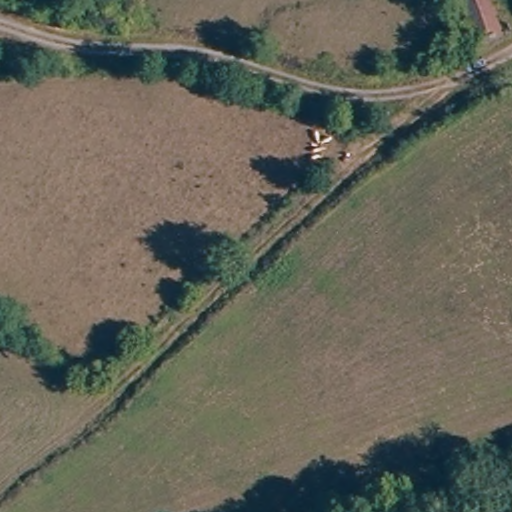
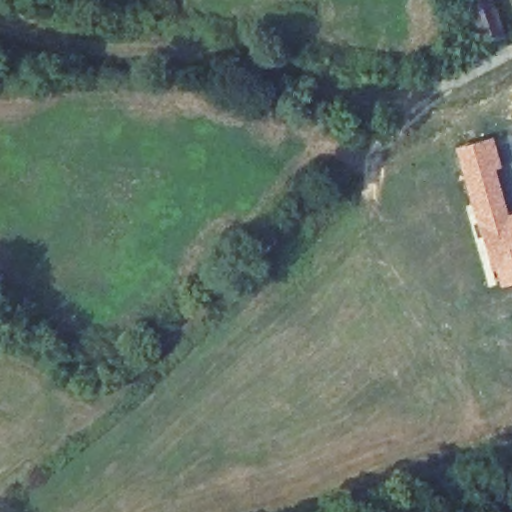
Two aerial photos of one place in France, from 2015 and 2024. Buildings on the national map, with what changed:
unchanged [(456,4),(455,0),(477,0),(487,33),(497,30),(500,39),(462,51),(448,6),(456,4)]
new [(492,136),(501,167),(495,170),(506,213),(512,211),(512,284),(494,289),(474,225),(453,147),(492,136)]

